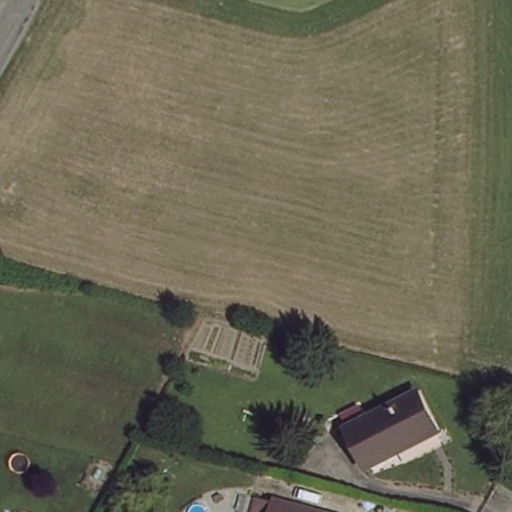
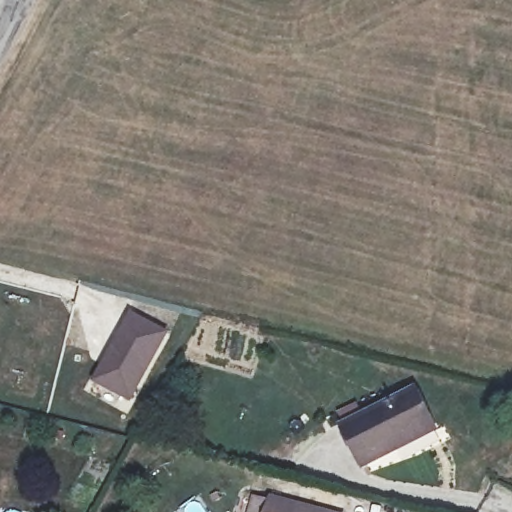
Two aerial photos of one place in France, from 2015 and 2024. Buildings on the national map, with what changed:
new [(129,312),(169,333),(131,405),(91,383),(129,312)]
unchanged [(342,428),(410,393),(415,391),(435,431),(397,451),(363,468),(342,428)]
unchanged [(334,512),(277,512),(281,498),(334,512)]

